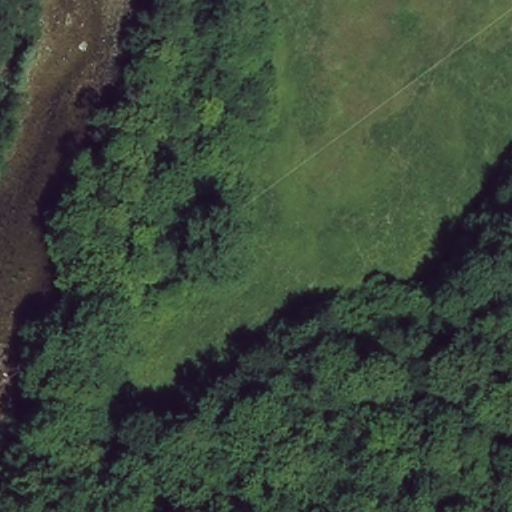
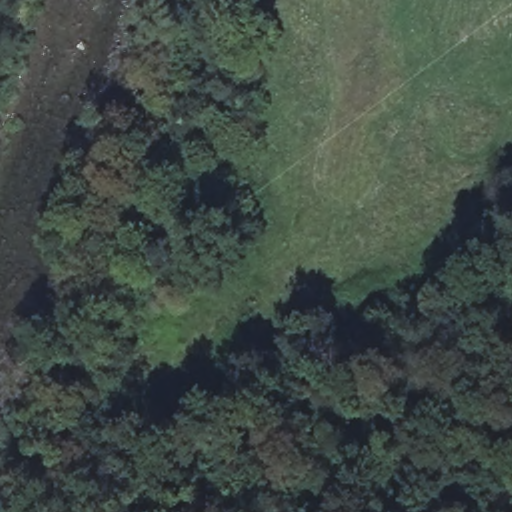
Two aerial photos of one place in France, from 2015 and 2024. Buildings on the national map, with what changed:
[]

